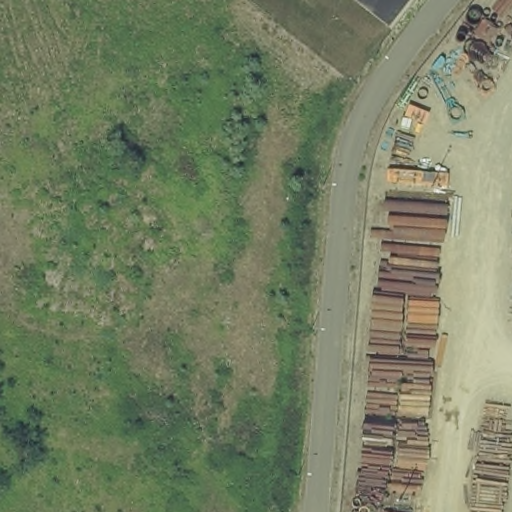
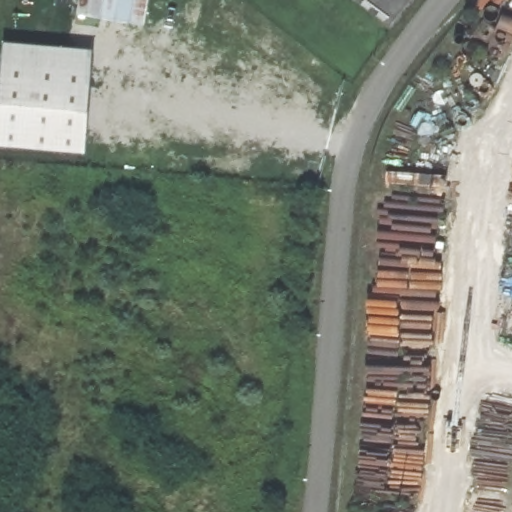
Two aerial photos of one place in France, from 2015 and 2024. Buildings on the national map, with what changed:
new [(77,15),(80,0),(149,0),(146,26),(77,15)]
new [(2,61),(3,41),(93,49),(92,69),(2,61)]
new [(86,153),(0,145),(0,79),(2,61),(92,69),(86,153)]

